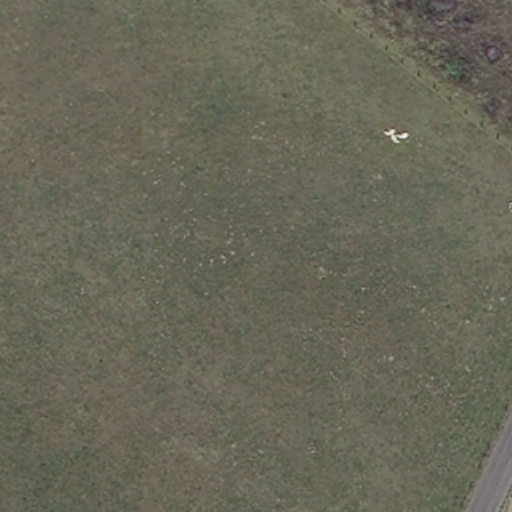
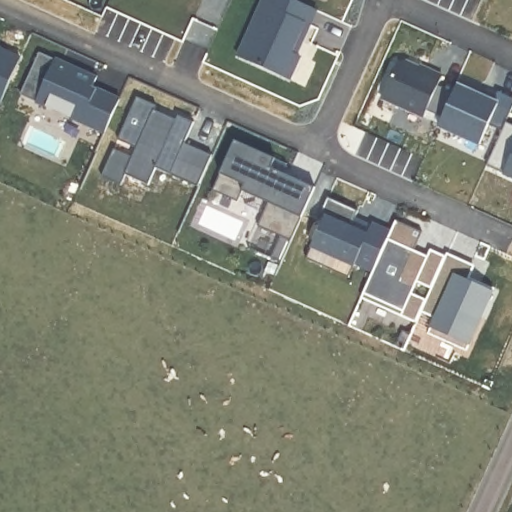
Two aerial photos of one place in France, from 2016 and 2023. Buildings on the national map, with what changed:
new [(299,54),(303,56),(291,80),(236,56),(262,0),(293,0),(318,11),(299,54)]
new [(96,78),(91,87),(119,99),(104,132),(21,95),(40,53),(96,78)]
new [(443,75),(439,85),(453,90),(457,83),(461,77),(496,93),(497,91),(512,99),(512,110),(506,124),(512,126),(512,180),(502,175),(504,171),(488,165),(502,131),(491,125),(481,147),(438,127),(444,116),(426,109),(423,115),(384,98),(399,64),(407,60),(443,75)]
new [(275,159),(271,169),(315,189),(292,241),(257,226),(268,204),(242,192),(237,203),(212,192),(235,143),(275,159)]
new [(372,270),(354,263),(353,265),(339,259),(333,271),(305,259),(323,218),(319,215),(327,198),(357,211),(352,222),(368,229),(371,224),(390,232),(372,270)]
new [(354,218),(370,224),(368,229),(352,222),(354,218)]
new [(422,233),(415,250),(428,257),(431,249),(445,256),(446,253),(475,267),(471,277),(491,287),(488,292),(492,294),(471,346),(468,351),(429,334),(432,328),(436,318),(420,312),(415,322),(361,299),(395,221),(422,233)]

